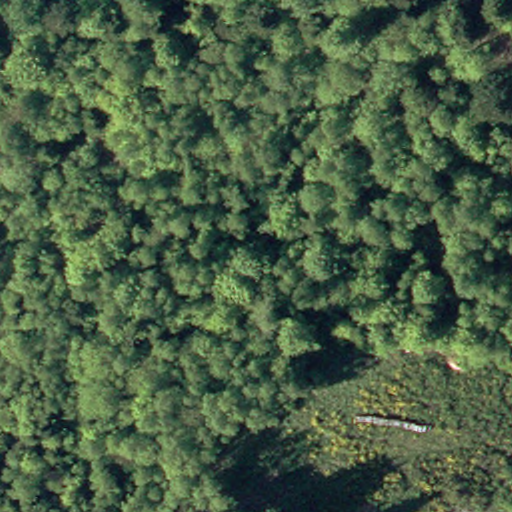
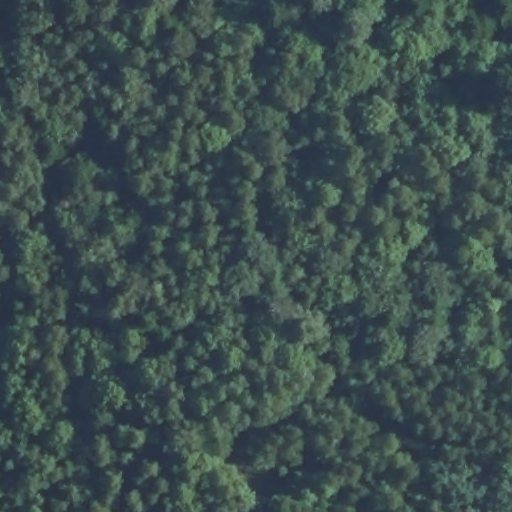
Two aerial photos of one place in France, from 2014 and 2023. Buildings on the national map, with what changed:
[]

